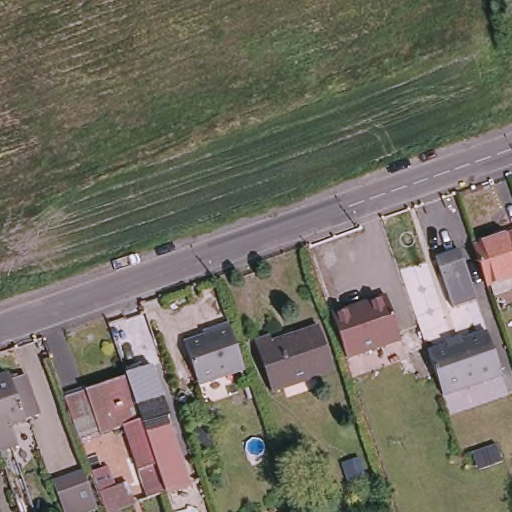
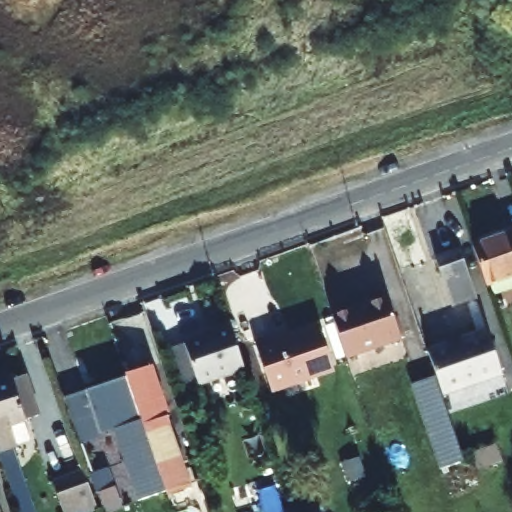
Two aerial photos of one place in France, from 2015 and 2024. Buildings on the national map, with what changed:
unchanged [(475,247),(512,234),(512,278),(489,287),(475,247)]
unchanged [(439,259),(457,253),(462,251),(479,299),(474,301),(455,308),(454,308),(438,259),(439,259)]
unchanged [(376,300),(381,298),(396,341),(391,342),(341,359),(340,357),(326,317),(376,300)]
demolished [(131,341),(118,345),(110,320),(123,316),(131,341)]
unchanged [(246,367),(209,379),(200,383),(186,341),(196,338),(216,332),(214,328),(231,323),(246,367)]
unchanged [(265,346),(314,329),(329,373),(263,397),(246,348),(264,341),(265,346)]
unchanged [(447,347),(466,340),(485,334),(490,332),(505,374),(500,376),(481,383),(461,390),(447,395),(432,353),(447,347)]
unchanged [(156,364),(173,419),(166,421),(184,478),(164,485),(161,475),(159,470),(156,461),(128,374),(156,364)]
unchanged [(128,374),(156,461),(159,470),(161,475),(164,485),(168,495),(115,512),(105,512),(65,396),(128,374)]
new [(435,378),(464,463),(440,471),(411,386),(435,378)]
unchanged [(0,383),(14,379),(28,420),(14,424),(21,446),(3,451),(0,442),(0,383)]
new [(499,445),(505,462),(485,469),(479,472),(473,454),(479,452),(499,445)]
unchanged [(93,512),(56,512),(45,481),(79,474),(93,512)]
unchanged [(0,512),(0,508),(1,512),(0,512)]

